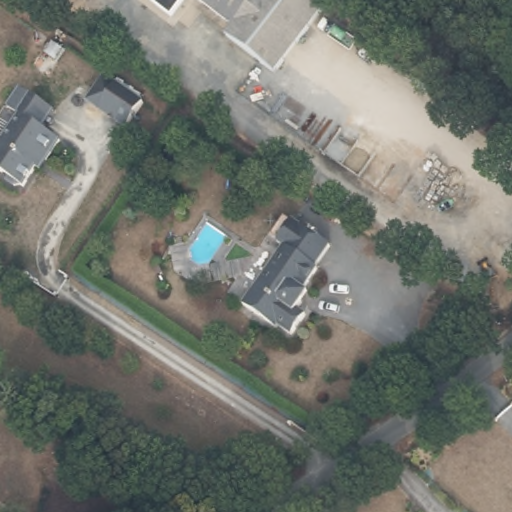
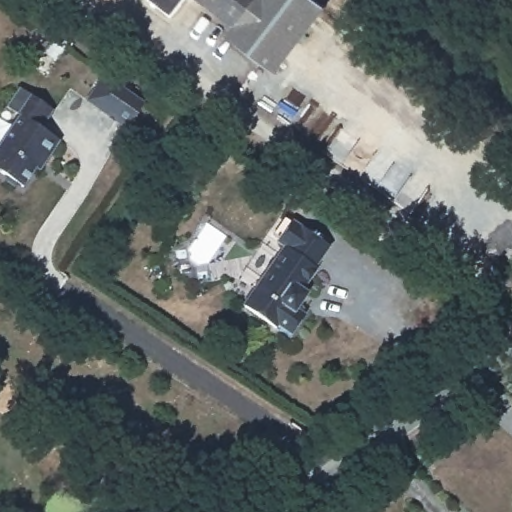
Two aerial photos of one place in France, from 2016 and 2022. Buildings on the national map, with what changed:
unchanged [(278,76),(230,40),(237,30),(196,0),(314,0),(327,10),(278,76)]
unchanged [(124,132),(84,106),(100,80),(140,107),(124,132)]
unchanged [(43,168),(37,165),(23,188),(0,175),(0,145),(17,115),(6,108),(19,89),(50,108),(39,127),(59,139),(43,168)]
unchanged [(317,259),(318,265),(301,285),(305,289),(293,304),(300,310),(284,328),(273,320),(269,325),(240,301),(281,246),(274,240),(289,219),(327,246),(317,259)]

